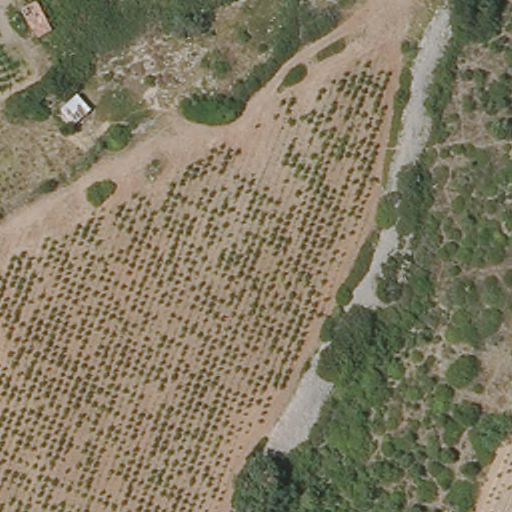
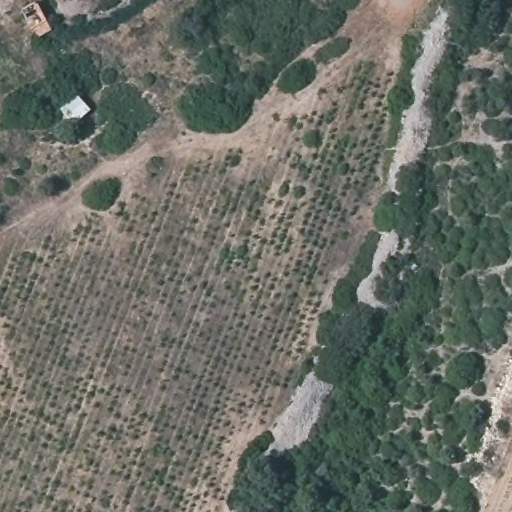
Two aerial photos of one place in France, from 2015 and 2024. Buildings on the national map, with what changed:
unchanged [(44,36),(38,25),(32,27),(22,9),(24,5),(35,0),(39,0),(55,30),(44,36)]
unchanged [(80,135),(68,121),(84,109),(95,121),(80,135)]

